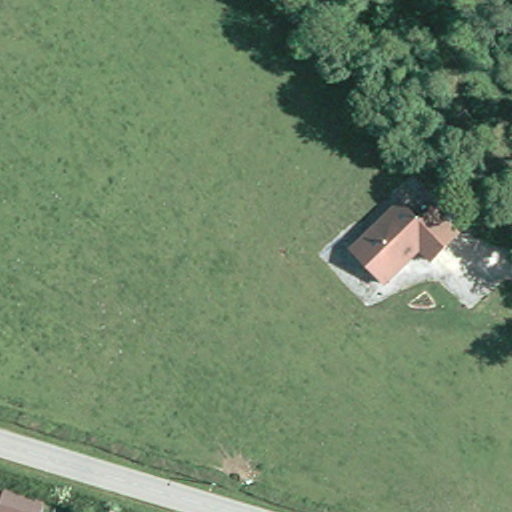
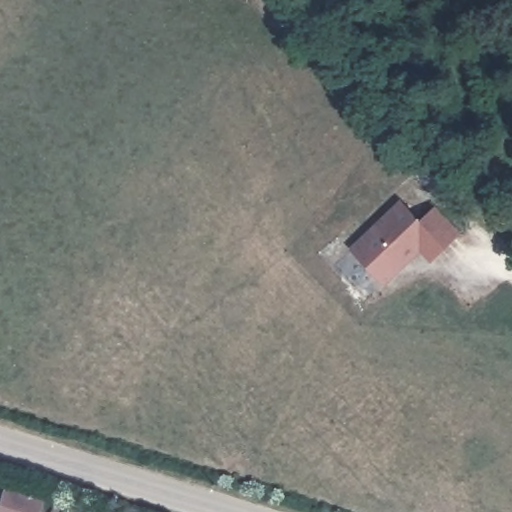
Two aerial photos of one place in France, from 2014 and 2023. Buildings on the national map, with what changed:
unchanged [(418,220),(436,203),(467,233),(437,265),(422,251),(384,285),(348,248),(400,203),(418,220)]
unchanged [(44,497),(40,512),(0,512),(0,507),(5,487),(44,497)]

